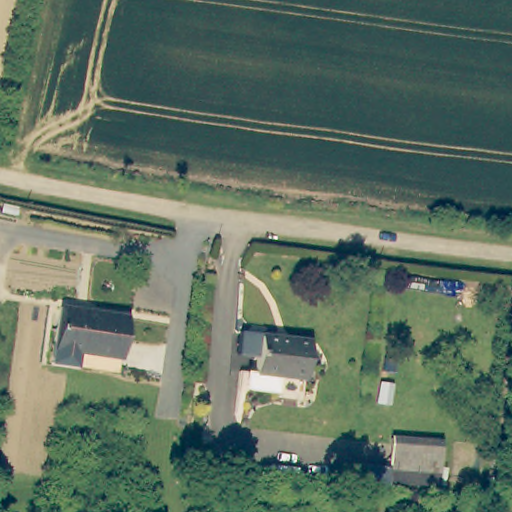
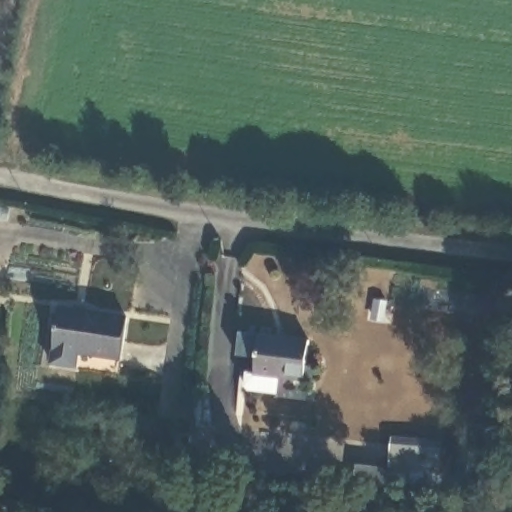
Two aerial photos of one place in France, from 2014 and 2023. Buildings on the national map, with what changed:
unchanged [(120,359),(79,354),(78,367),(52,364),(54,351),(59,305),(126,314),(120,359)]
unchanged [(248,386),(245,382),(246,369),(253,370),(257,332),(286,334),(286,331),(306,333),(303,374),(277,372),(276,388),(248,386)]
unchanged [(385,474),(386,461),(389,429),(440,432),(438,463),(437,478),(385,474)]

